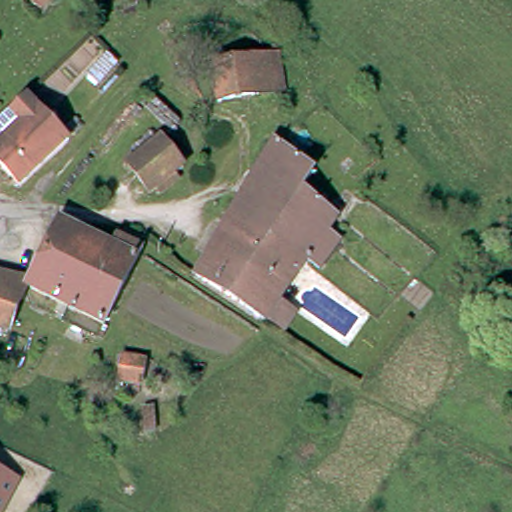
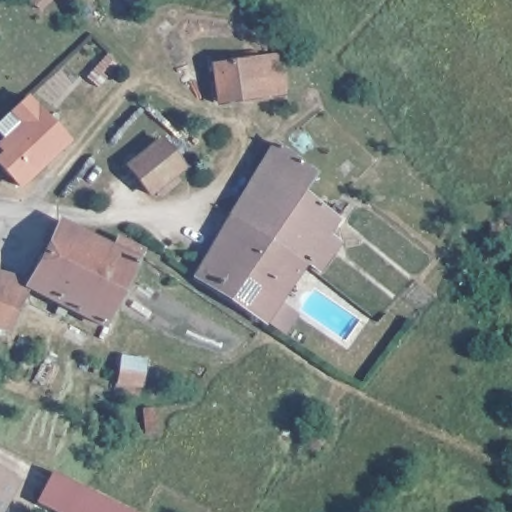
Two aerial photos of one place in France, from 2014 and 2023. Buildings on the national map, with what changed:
unchanged [(19,0),(17,2),(14,0),(19,0)]
unchanged [(74,40),(88,47),(71,72),(57,62),(74,40)]
unchanged [(267,54),(274,86),(270,87),(208,98),(202,65),(257,56),(267,54)]
unchanged [(0,156),(4,152),(0,149),(0,138),(0,137),(0,114),(17,92),(64,131),(24,182),(0,162),(0,156)]
unchanged [(124,160),(157,132),(182,160),(148,188),(124,160)]
unchanged [(275,253),(225,220),(273,141),(312,165),(295,189),(335,217),(325,231),(338,240),(317,270),(303,260),(297,267),(275,253)]
unchanged [(57,213),(112,242),(117,234),(138,245),(98,317),(22,275),(57,213)]
unchanged [(278,331),(260,317),(192,272),(225,220),(275,253),(297,267),(274,299),(292,312),(278,331)]
unchanged [(28,280),(11,333),(0,330),(0,272),(17,275),(28,280)]
new [(130,512),(57,512),(35,501),(50,472),(130,512)]
unchanged [(0,475),(9,481),(0,496),(0,475)]

